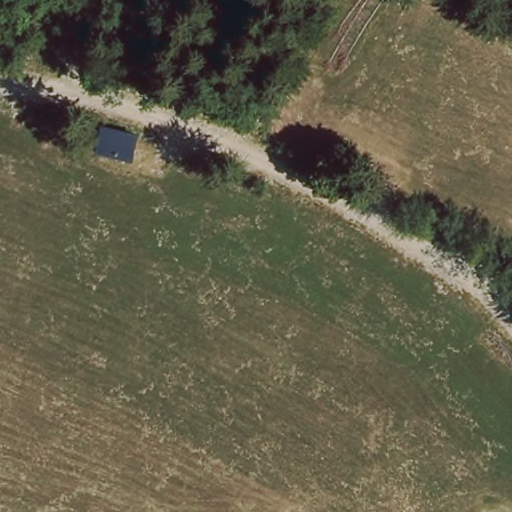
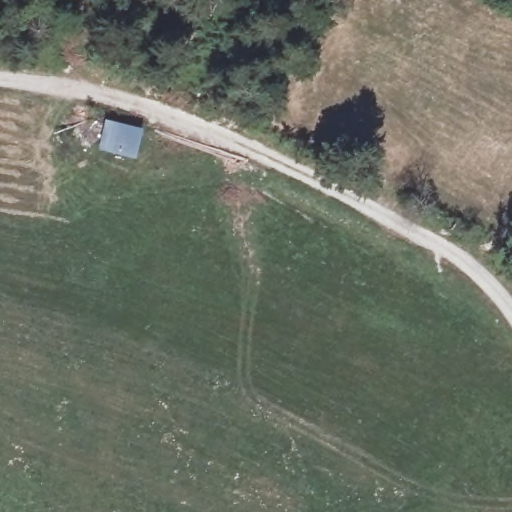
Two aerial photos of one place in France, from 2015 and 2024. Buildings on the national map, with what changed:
unchanged [(119,123),(115,148),(84,144),(87,119),(119,123)]

